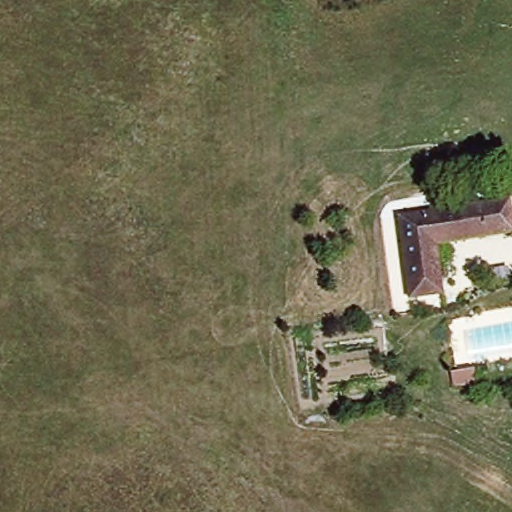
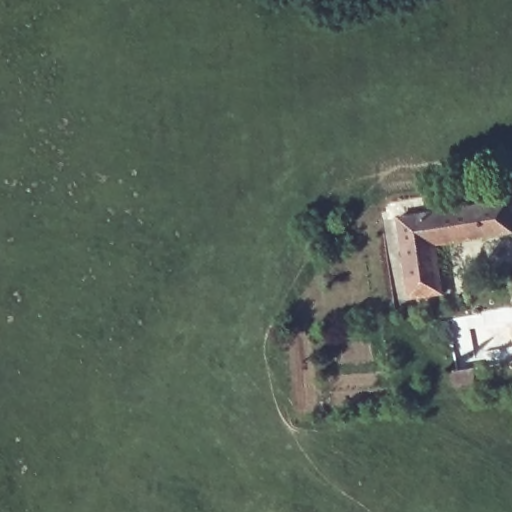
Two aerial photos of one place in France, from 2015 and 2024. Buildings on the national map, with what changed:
unchanged [(512,201),(512,230),(439,240),(447,292),(415,296),(403,216),(512,201)]
unchanged [(454,385),(452,372),(467,369),(469,382),(454,385)]

